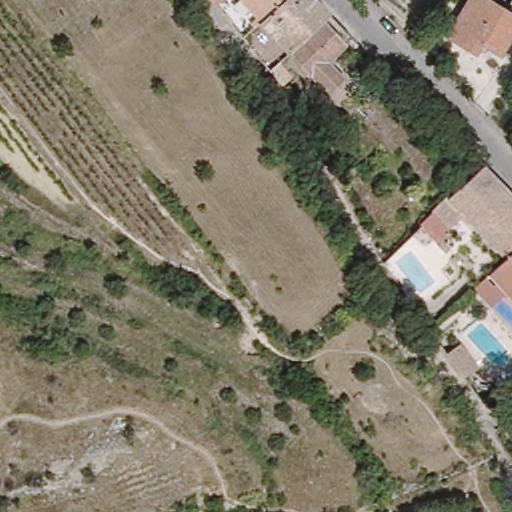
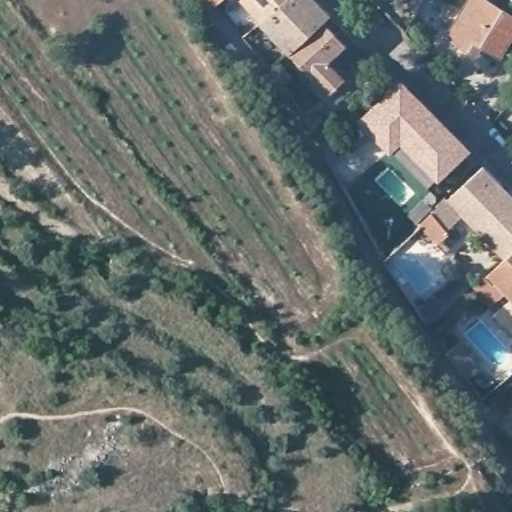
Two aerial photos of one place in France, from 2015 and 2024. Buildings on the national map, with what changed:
unchanged [(215,0),(213,2),(211,0),(215,0)]
unchanged [(280,0),(257,20),(239,0),(280,0)]
unchanged [(307,75),(257,20),(280,0),(308,0),(323,16),(346,39),(321,61),(343,84),(327,99),(306,75),(307,75)]
unchanged [(447,39),(472,0),(486,0),(512,16),(512,33),(498,57),(482,47),(474,57),(447,39)]
demolished [(245,30),(282,76),(276,83),(244,43),(240,35),(245,30)]
new [(401,84),(454,135),(467,149),(438,177),(401,139),(390,150),(362,121),(401,84)]
unchanged [(440,230),(445,235),(438,242),(445,250),(440,255),(414,227),(478,166),(512,199),(512,247),(499,260),(455,215),(440,230)]
unchanged [(486,285),(489,281),(483,275),(499,260),(512,247),(512,305),(502,295),(487,309),(468,290),(480,279),(486,285)]
unchanged [(464,347),(483,371),(470,381),(451,357),(464,347)]

